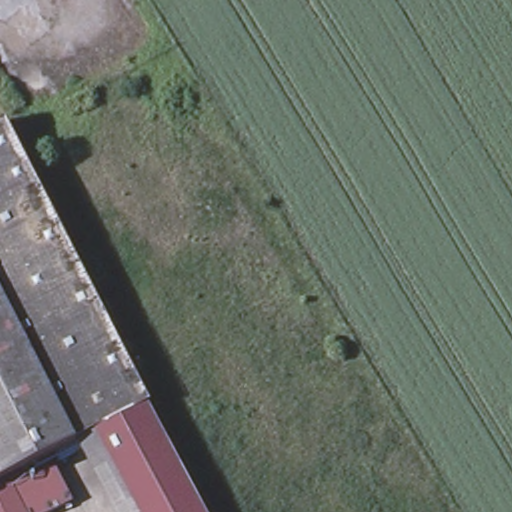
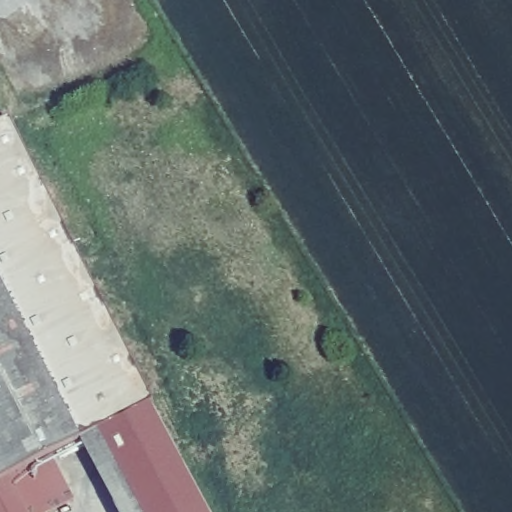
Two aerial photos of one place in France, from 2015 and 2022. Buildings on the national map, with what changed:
unchanged [(0,129),(14,122),(159,405),(152,409),(104,433),(82,444),(32,470),(11,480),(0,486),(0,129)]
unchanged [(206,512),(144,512),(104,433),(152,409),(206,512)]
unchanged [(144,512),(116,512),(82,444),(104,433),(144,512)]
unchanged [(54,512),(28,512),(11,480),(32,470),(54,512)]
unchanged [(28,512),(0,512),(0,486),(11,480),(28,512)]

